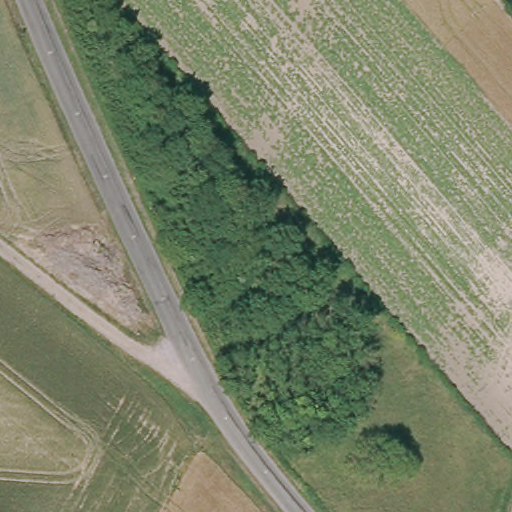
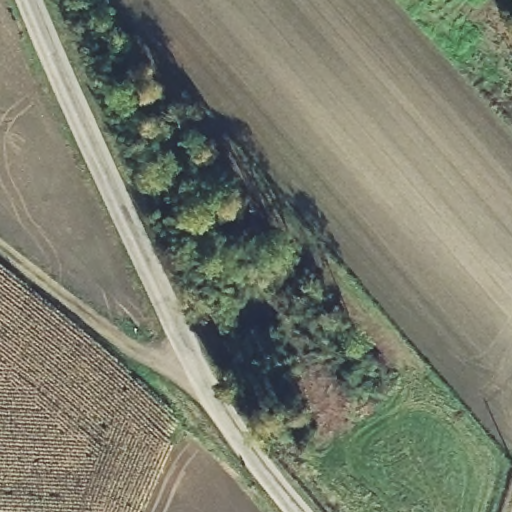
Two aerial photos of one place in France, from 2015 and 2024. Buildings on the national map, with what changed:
[]

